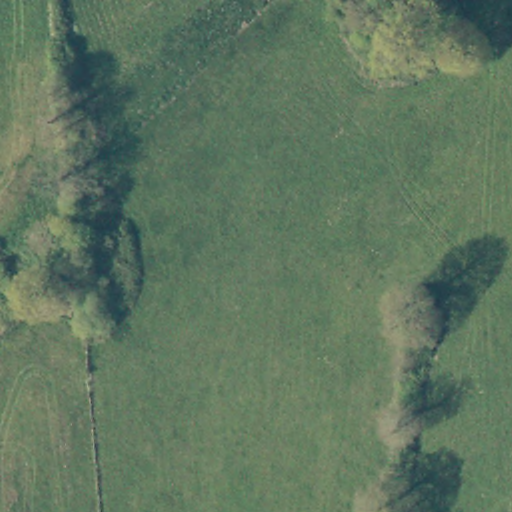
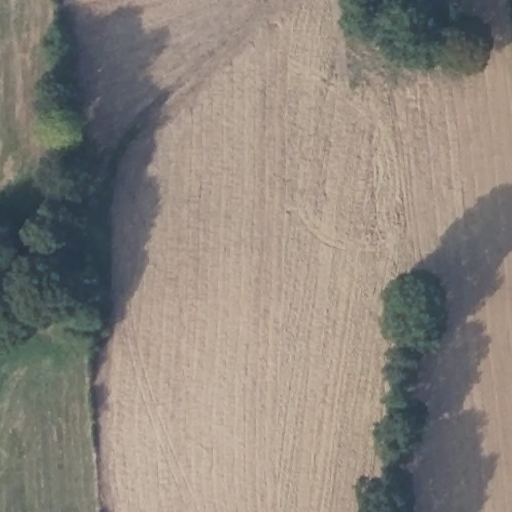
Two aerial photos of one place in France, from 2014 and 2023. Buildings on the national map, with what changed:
[]

